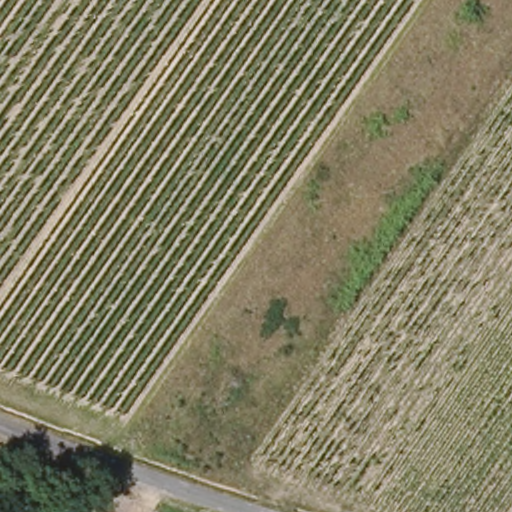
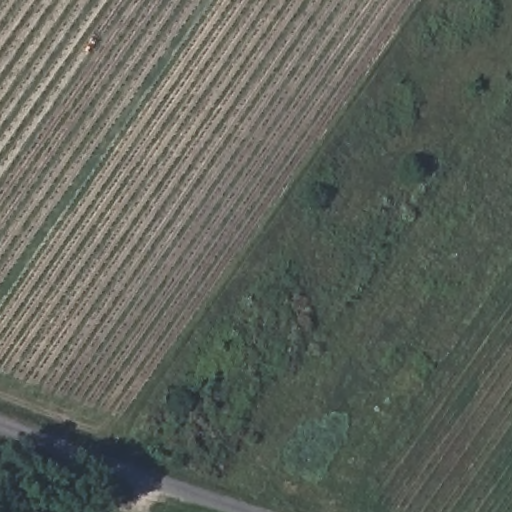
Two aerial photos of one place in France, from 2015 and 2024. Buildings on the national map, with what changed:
[]

